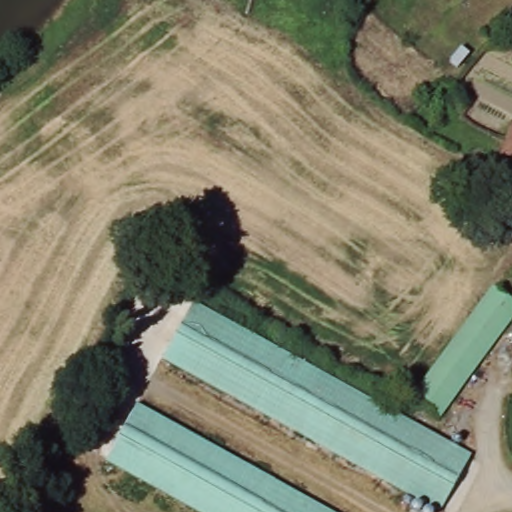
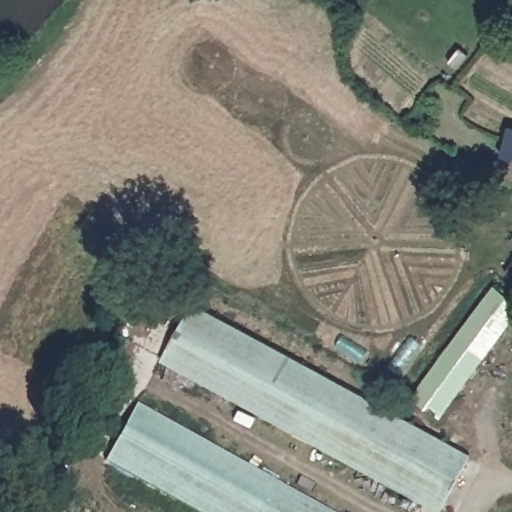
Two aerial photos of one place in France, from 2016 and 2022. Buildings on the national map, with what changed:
unchanged [(509,144),(512,132),(512,163),(506,161),(509,144)]
unchanged [(494,287),(512,300),(512,320),(443,414),(414,394),(494,287)]
unchanged [(474,451),(445,502),(166,350),(192,298),(474,451)]
unchanged [(326,512),(202,512),(104,459),(133,408),(326,512)]

